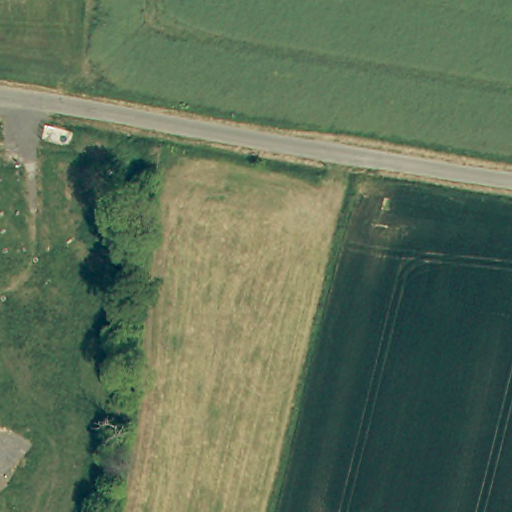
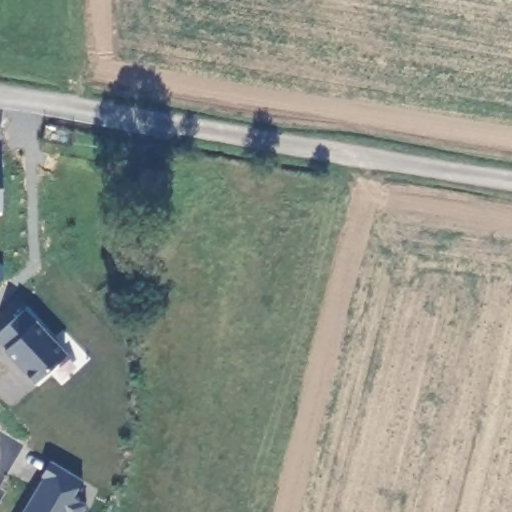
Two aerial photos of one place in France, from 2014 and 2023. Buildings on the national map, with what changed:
new [(67,353),(35,383),(0,342),(0,332),(25,307),(67,353)]
new [(50,460),(83,479),(74,495),(88,503),(82,512),(21,512),(50,460)]

